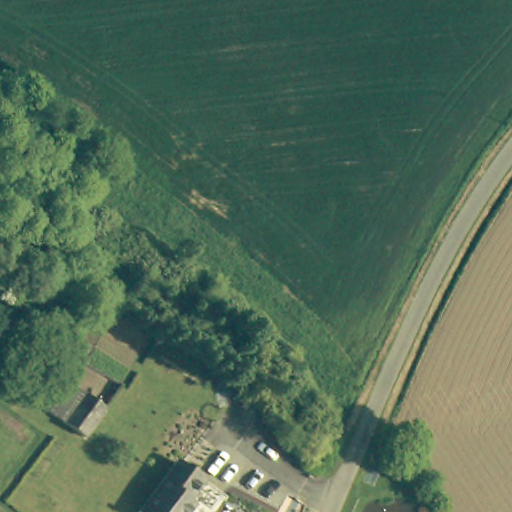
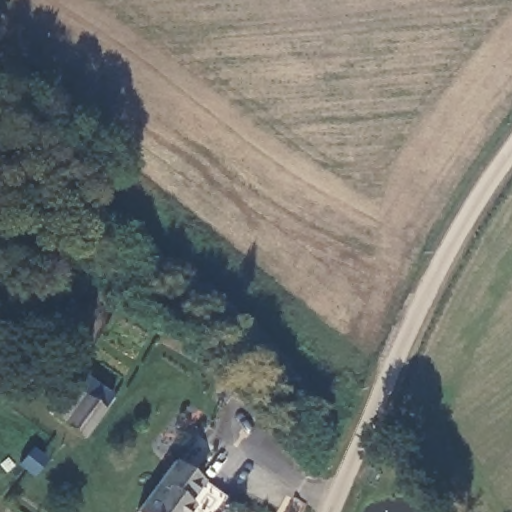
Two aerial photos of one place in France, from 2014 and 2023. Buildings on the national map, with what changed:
unchanged [(104,412),(82,439),(51,414),(72,387),(104,412)]
unchanged [(193,512),(143,512),(183,460),(205,476),(203,479),(189,497),(198,505),(193,512)]

